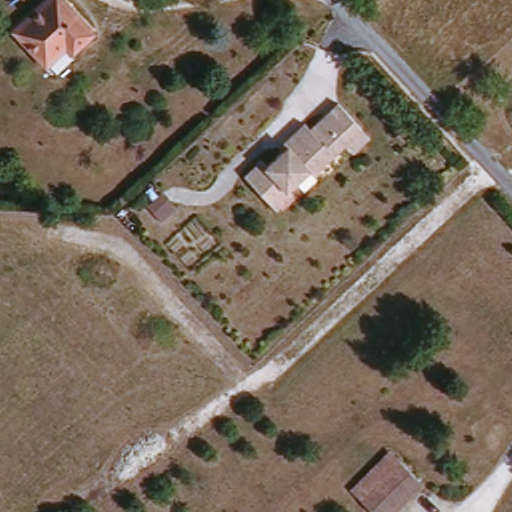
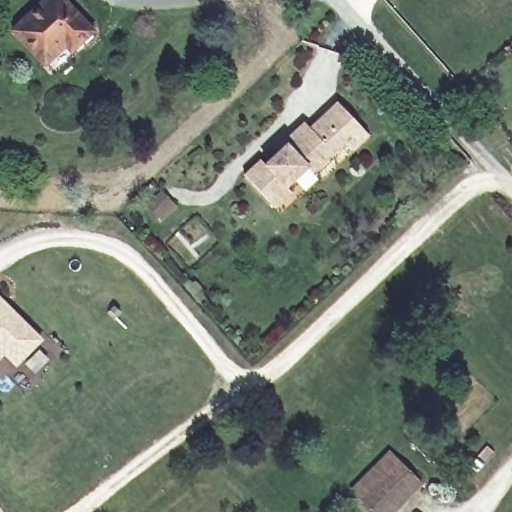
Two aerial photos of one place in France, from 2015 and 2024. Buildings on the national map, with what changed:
unchanged [(69,0),(99,35),(85,49),(78,40),(55,61),(24,27),(55,0),(69,0)]
unchanged [(285,143),(306,123),(311,129),(321,120),(339,104),(363,129),(344,145),(313,173),(309,168),(288,188),(292,193),(276,208),(245,174),(262,159),(267,165),(288,146),(285,143)]
unchanged [(177,233),(174,229),(164,218),(178,204),(188,215),(192,219),(177,233)]
new [(16,370),(4,358),(0,363),(0,297),(45,340),(16,370)]
unchanged [(390,511),(389,512),(368,512),(359,504),(354,498),(392,459),(417,484),(390,511)]

